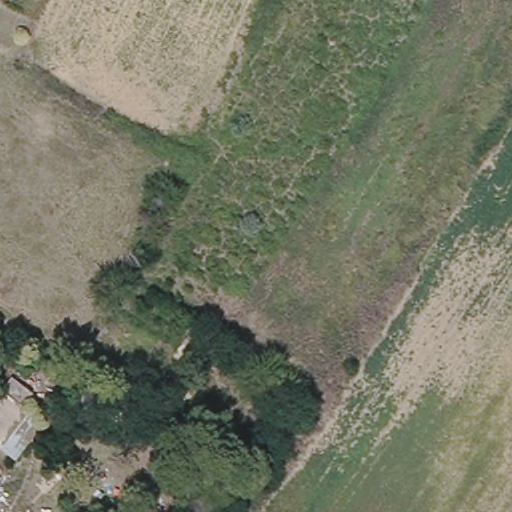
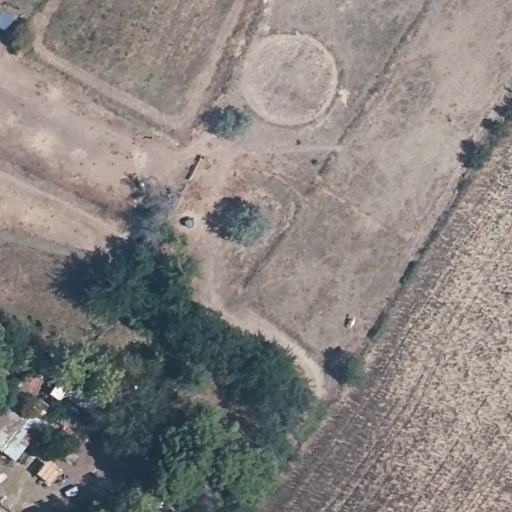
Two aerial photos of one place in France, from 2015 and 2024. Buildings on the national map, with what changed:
unchanged [(14,458),(4,450),(0,447),(0,391),(1,391),(31,412),(29,415),(40,422),(14,458)]

